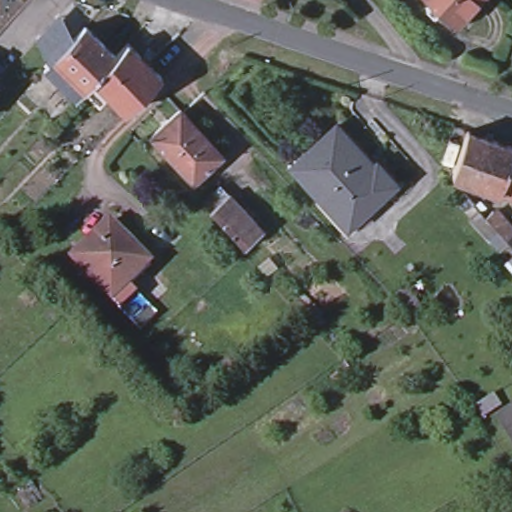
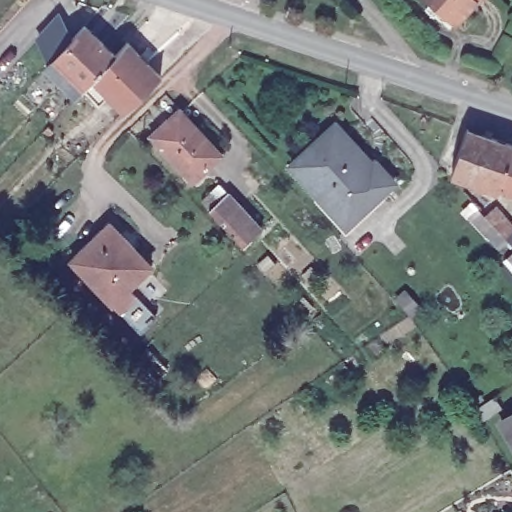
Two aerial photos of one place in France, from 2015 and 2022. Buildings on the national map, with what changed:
unchanged [(456,25),(430,0),(479,0),(456,25)]
unchanged [(113,51),(90,75),(82,84),(50,55),(82,21),(113,51)]
unchanged [(125,37),(159,72),(122,108),(90,75),(113,51),(125,37)]
unchanged [(177,105),(220,150),(190,177),(148,132),(177,105)]
unchanged [(331,120),(368,160),(372,156),(393,178),(344,223),(287,161),(331,120)]
unchanged [(454,177),(450,172),(463,133),(465,130),(512,146),(512,196),(454,177)]
unchanged [(242,249),(207,211),(197,199),(215,182),(227,194),(262,232),(242,249)]
unchanged [(490,213),(505,228),(497,236),(482,220),(490,213)]
unchanged [(138,330),(111,301),(69,257),(102,226),(104,224),(108,220),(150,264),(146,268),(143,270),(127,286),(154,315),(138,330)]
unchanged [(512,410),(512,437),(500,418),(512,410)]
unchanged [(10,512),(2,501),(35,479),(47,497),(28,512),(10,512)]

